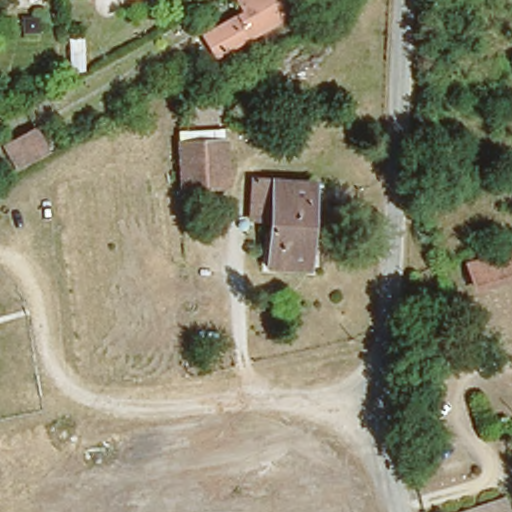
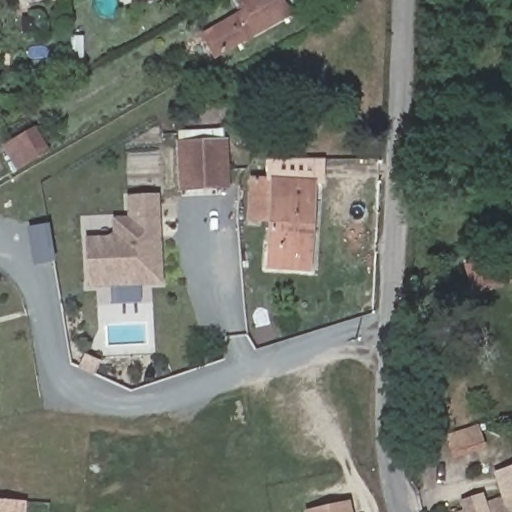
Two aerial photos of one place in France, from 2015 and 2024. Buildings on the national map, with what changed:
unchanged [(244,0),(286,0),(290,5),(218,47),(207,29),(247,5),(244,0)]
unchanged [(187,115),(219,115),(221,184),(187,183),(187,115)]
unchanged [(37,121),(54,157),(16,178),(1,144),(37,121)]
unchanged [(305,177),(305,199),(307,199),(303,265),(262,263),(264,215),(251,215),(244,215),(247,174),(252,174),(305,177)]
new [(111,220),(127,219),(125,195),(159,193),(162,285),(87,289),(83,236),(112,235),(111,220)]
unchanged [(472,285),(466,260),(512,245),(512,272),(472,285)]
unchanged [(509,512),(436,512),(436,511),(502,490),(509,512)]
new [(25,512),(0,512),(0,500),(26,501),(25,512)]
new [(348,500),(351,512),(304,512),(304,510),(348,500)]

